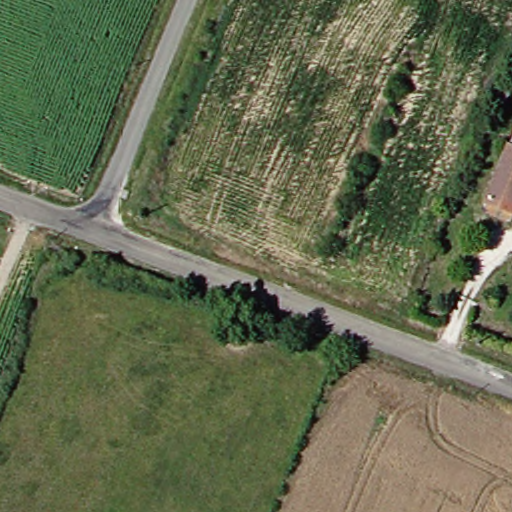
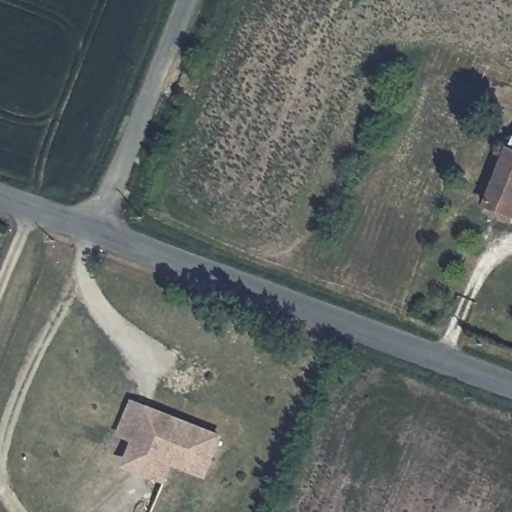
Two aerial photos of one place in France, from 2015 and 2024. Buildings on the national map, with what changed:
unchanged [(510,129),(512,129),(512,218),(480,206),(510,129)]
new [(150,406),(226,435),(209,479),(176,466),(170,484),(125,467),(135,442),(120,436),(133,399),(150,406)]

